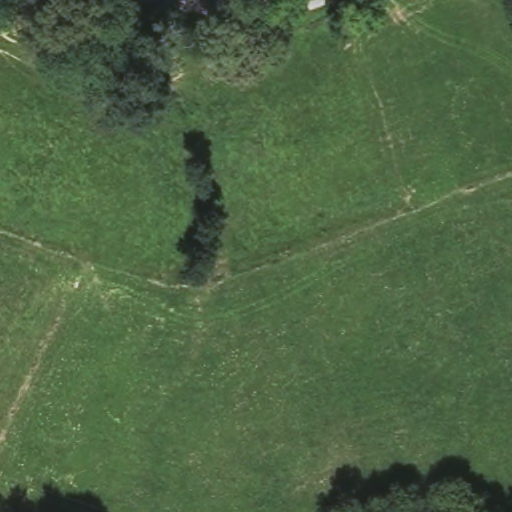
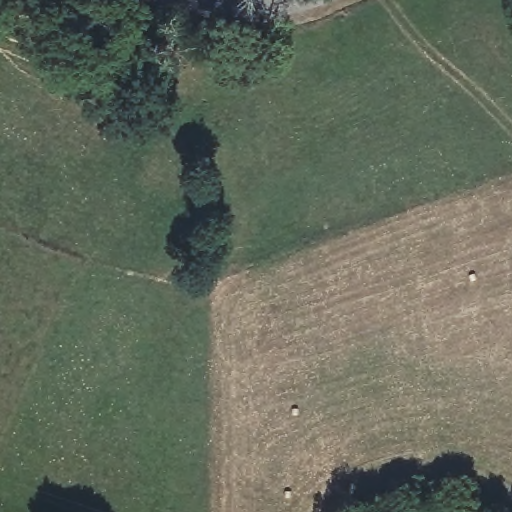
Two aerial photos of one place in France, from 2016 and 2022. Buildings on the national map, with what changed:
[]

